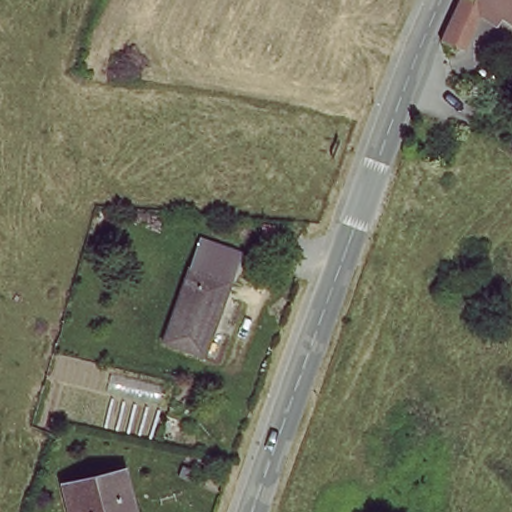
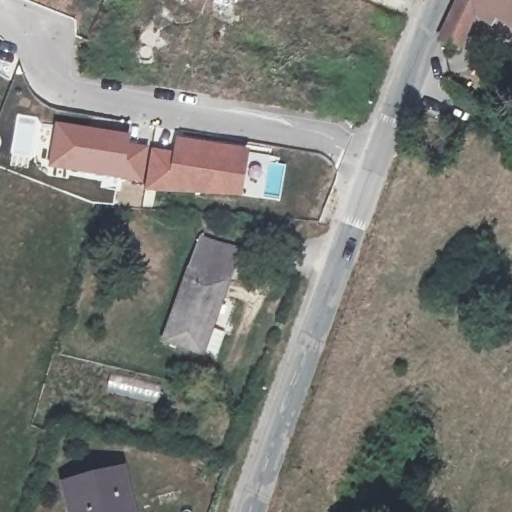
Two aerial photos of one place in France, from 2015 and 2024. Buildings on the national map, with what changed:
unchanged [(474,4),(450,49),(434,42),(451,7),(454,0),(512,0),(512,28),(474,4)]
new [(53,122),(131,135),(130,142),(150,146),(143,187),(45,169),(53,122)]
new [(143,187),(150,146),(172,151),(174,137),(248,149),(241,199),(143,192),(143,187)]
unchanged [(236,258),(202,359),(161,346),(196,244),(236,258)]
unchanged [(124,475),(133,512),(73,512),(68,488),(124,475)]

